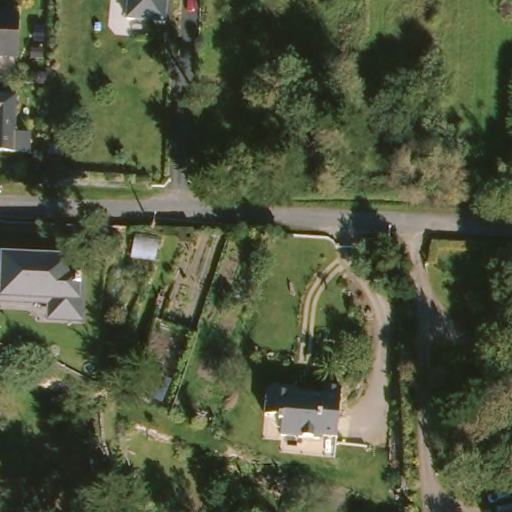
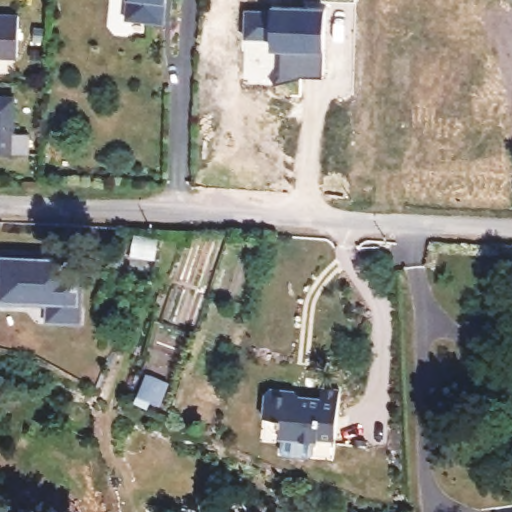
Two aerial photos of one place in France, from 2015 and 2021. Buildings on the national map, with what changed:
unchanged [(160,24),(122,21),(124,0),(163,0),(160,24)]
new [(240,12),(266,13),(266,8),(325,9),(323,79),(301,78),(273,88),(278,78),(280,53),(265,53),(266,41),(239,40),(240,12)]
unchanged [(0,55),(0,16),(7,16),(7,56),(0,55)]
unchanged [(22,109),(20,108),(19,129),(34,130),(34,153),(0,152),(0,95),(22,96),(22,109)]
unchanged [(25,296),(25,300),(5,300),(5,296),(1,296),(1,284),(0,284),(0,256),(27,256),(27,260),(39,260),(39,256),(55,256),(55,264),(77,265),(77,269),(81,269),(81,297),(77,296),(76,304),(80,304),(80,315),(52,315),(52,304),(57,304),(57,296),(25,296)]
unchanged [(5,391),(0,391),(0,355),(4,354),(5,391)]
unchanged [(317,404),(317,394),(336,396),(331,445),(314,444),(314,447),(276,444),(277,429),(273,425),(260,424),(262,399),(267,395),(276,396),(281,401),(317,404)]

